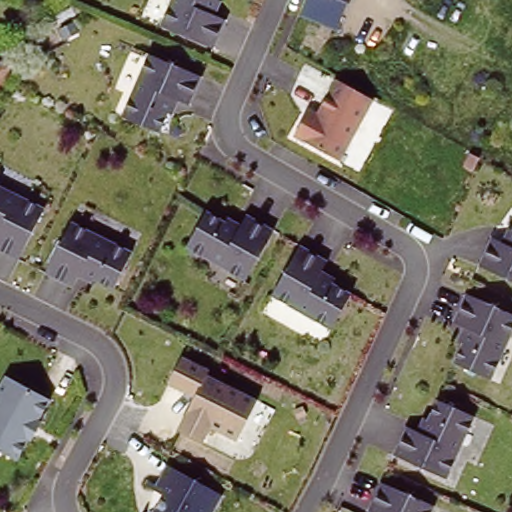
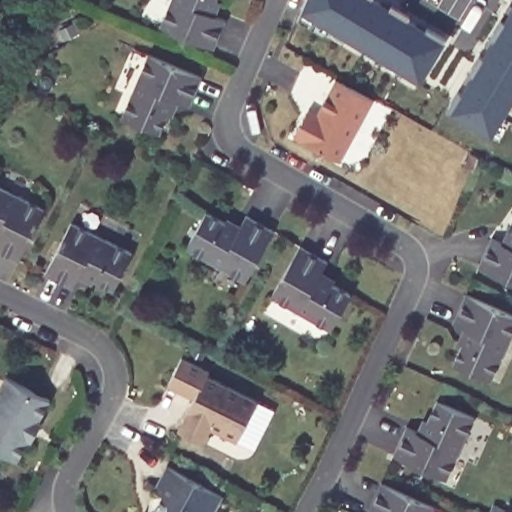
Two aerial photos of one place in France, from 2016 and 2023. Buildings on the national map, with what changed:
unchanged [(211,11),(227,17),(214,46),(161,24),(172,0),(216,0),(211,11)]
new [(444,40),(445,40),(420,82),(326,23),(323,33),(297,18),(303,8),(306,0),(379,0),(444,40)]
demolished [(337,23),(299,8),(303,0),(347,0),(337,23)]
new [(449,111),(512,7),(512,100),(490,136),(449,111)]
unchanged [(158,132),(119,117),(147,53),(201,78),(188,106),(178,101),(172,115),(168,113),(158,132)]
unchanged [(1,62),(0,64),(0,61),(1,62)]
unchanged [(368,99),(339,161),(289,139),(303,109),(315,112),(329,86),(368,99)]
unchanged [(44,208),(16,259),(0,251),(0,185),(44,208)]
unchanged [(271,230),(244,281),(184,248),(206,210),(224,219),(227,215),(240,223),(246,214),(271,230)]
unchanged [(131,252),(111,287),(94,278),(91,283),(78,276),(71,285),(45,274),(70,220),(131,252)]
unchanged [(512,228),(512,283),(477,267),(489,238),(501,241),(506,228),(511,232),(512,228)]
unchanged [(326,261),(320,268),(334,277),(332,281),(349,292),(328,329),(271,297),(301,246),(326,261)]
unchanged [(512,331),(491,379),(451,363),(459,343),(456,341),(462,325),(453,321),(464,293),(512,315),(512,331)]
unchanged [(206,374),(258,399),(236,444),(209,431),(206,439),(176,428),(191,398),(165,385),(180,356),(208,371),(206,374)]
unchanged [(47,401),(35,422),(38,423),(28,442),(25,440),(13,461),(0,454),(0,383),(3,377),(47,401)]
unchanged [(474,416),(446,478),(393,455),(403,426),(414,431),(421,417),(427,419),(434,400),(474,416)]
unchanged [(159,494),(151,489),(142,484),(144,480),(153,484),(164,464),(219,494),(210,512),(147,512),(151,511),(159,494)]
unchanged [(430,512),(368,512),(365,511),(378,481),(434,505),(430,512)]

